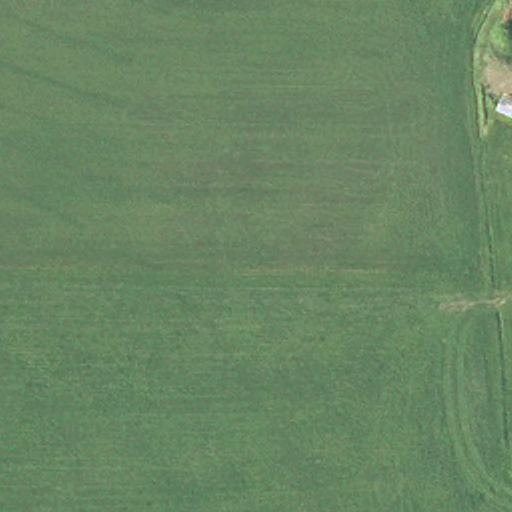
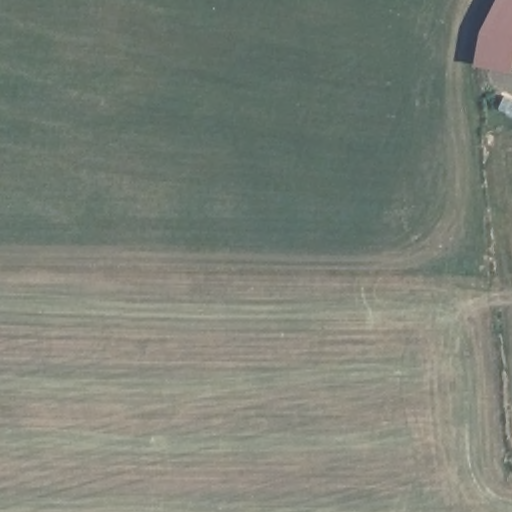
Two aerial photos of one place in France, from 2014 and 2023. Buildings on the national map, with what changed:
new [(498,0),(512,0),(512,62),(510,72),(474,65),(480,33),(498,0)]

